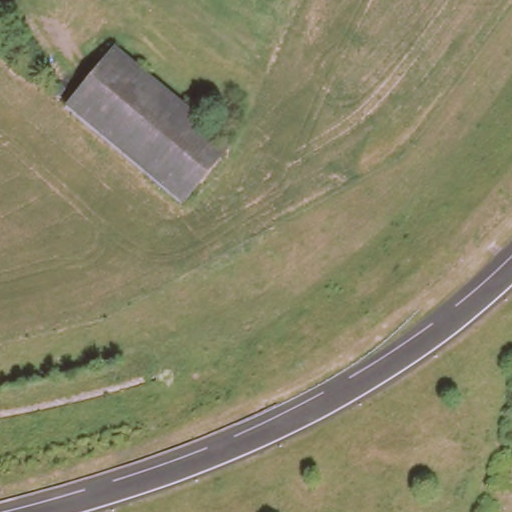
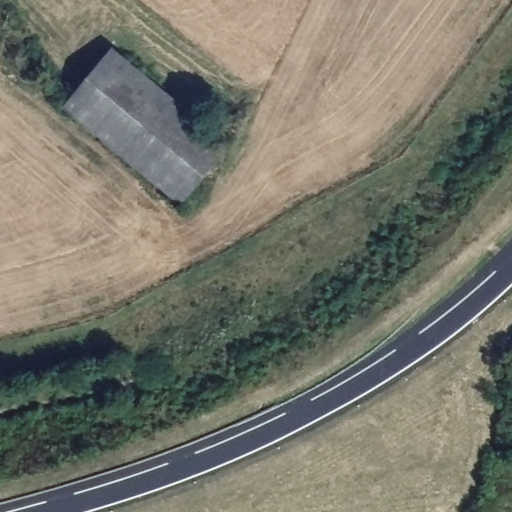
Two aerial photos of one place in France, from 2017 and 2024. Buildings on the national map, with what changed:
unchanged [(107,49),(223,145),(175,204),(58,108),(107,49)]

